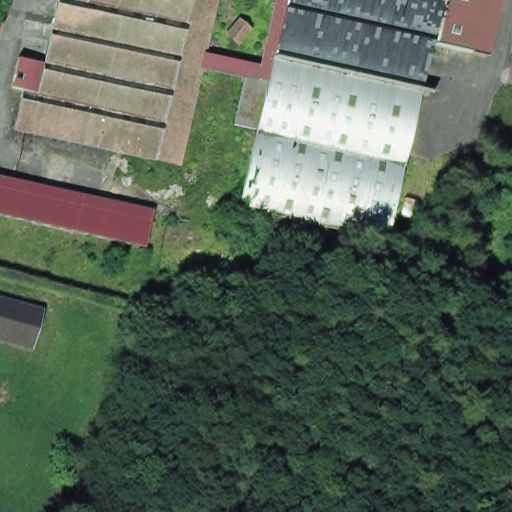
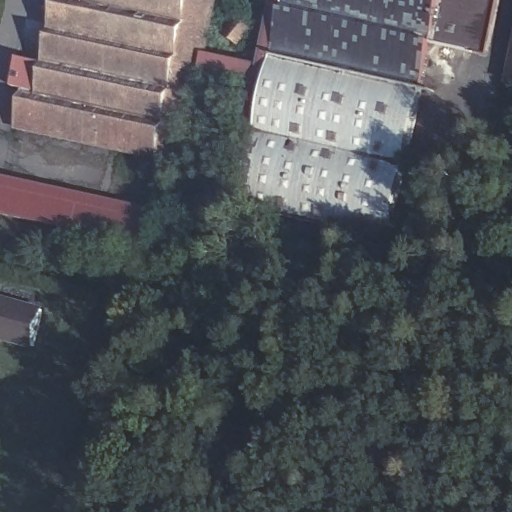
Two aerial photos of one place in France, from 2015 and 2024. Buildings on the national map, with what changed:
unchanged [(42,66),(57,3),(55,0),(216,0),(204,60),(201,73),(180,168),(155,162),(15,131),(21,101),(23,93),(10,91),(15,68),(17,60),(42,66)]
unchanged [(472,57),(428,48),(418,94),(272,63),(266,85),(242,80),(241,82),(201,73),(204,60),(261,72),(276,0),(484,0),(472,57)]
unchanged [(484,0),(501,0),(488,61),(472,57),(484,0)]
unchanged [(240,210),(257,133),(232,127),(241,82),(242,80),(266,85),(272,63),(418,94),(387,242),(240,210)]
unchanged [(0,216),(0,180),(53,193),(102,204),(150,215),(148,227),(143,249),(94,237),(46,227),(0,216)]
unchanged [(0,339),(0,301),(39,311),(29,347),(0,339)]

